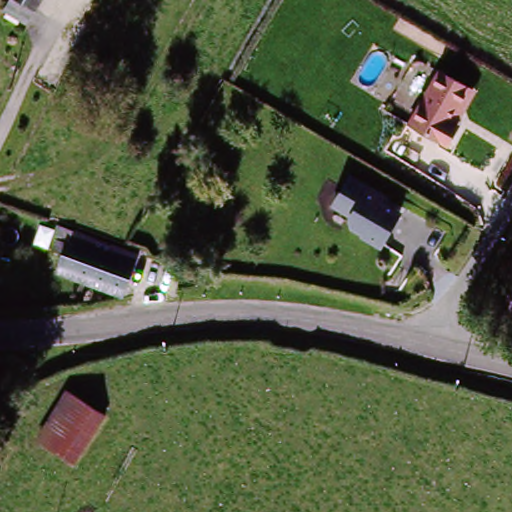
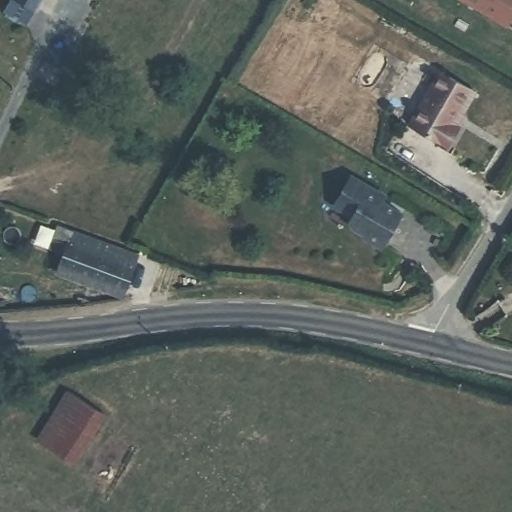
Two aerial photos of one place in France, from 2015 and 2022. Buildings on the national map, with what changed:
unchanged [(7,0),(39,0),(37,5),(27,22),(2,8),(7,0)]
new [(463,0),(512,0),(512,24),(510,27),(463,0)]
unchanged [(409,126),(440,72),(480,93),(445,152),(409,126)]
unchanged [(349,226),(354,214),(332,204),(350,170),(372,179),(370,187),(405,208),(382,245),(349,226)]
unchanged [(53,232),(137,257),(126,293),(58,272),(62,260),(45,255),(53,232)]
unchanged [(72,395),(103,417),(69,463),(39,441),(72,395)]

